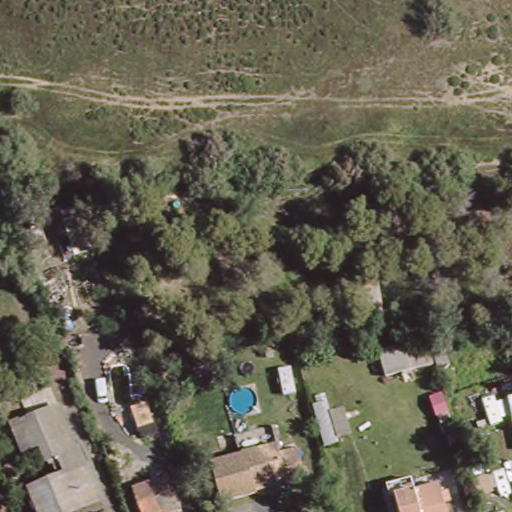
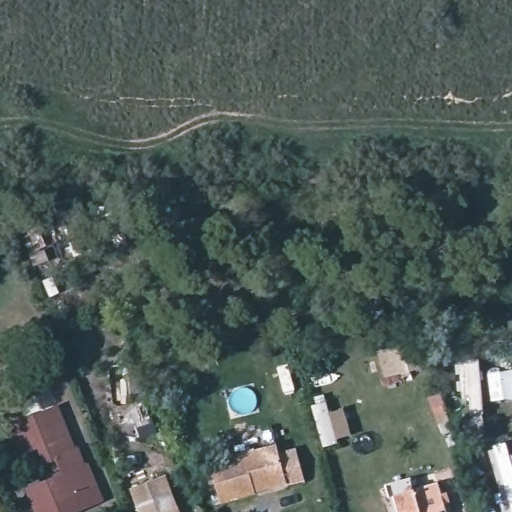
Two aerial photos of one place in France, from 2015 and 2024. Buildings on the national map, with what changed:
unchanged [(385,349),(420,339),(426,364),(391,373),(385,349)]
unchanged [(318,358),(362,348),(363,362),(323,372),(318,358)]
unchanged [(181,367),(206,364),(205,384),(182,387),(181,367)]
unchanged [(45,459),(39,444),(19,451),(8,419),(58,399),(74,438),(79,436),(87,458),(91,457),(106,496),(66,512),(39,512),(27,482),(56,472),(50,459),(45,459)]
unchanged [(149,421),(153,433),(141,436),(136,424),(149,421)]
unchanged [(447,421),(451,432),(442,436),(438,423),(447,421)]
unchanged [(215,459),(280,441),(292,480),(227,497),(215,459)]
unchanged [(146,478),(166,471),(180,507),(164,512),(160,512),(158,510),(154,512),(144,512),(139,502),(153,497),(146,478)]
unchanged [(395,489),(436,479),(446,512),(402,512),(395,489)]
unchanged [(6,496),(14,512),(0,512),(0,498),(6,496)]

